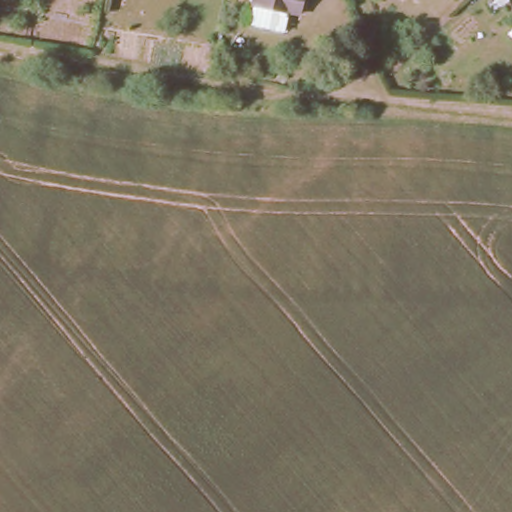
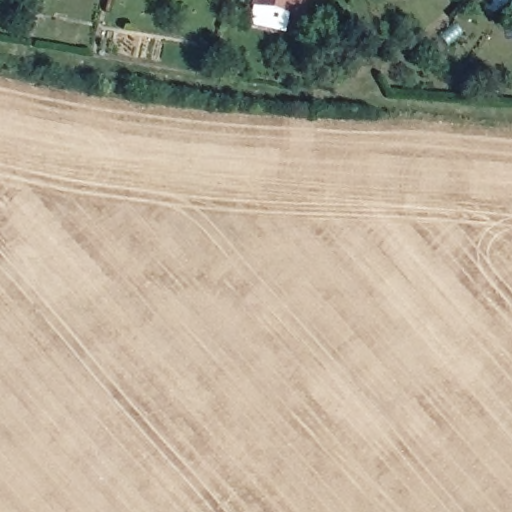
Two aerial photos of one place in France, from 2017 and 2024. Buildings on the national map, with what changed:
unchanged [(294,14),(282,11),(278,31),(243,23),(248,0),(296,0),(294,14)]

